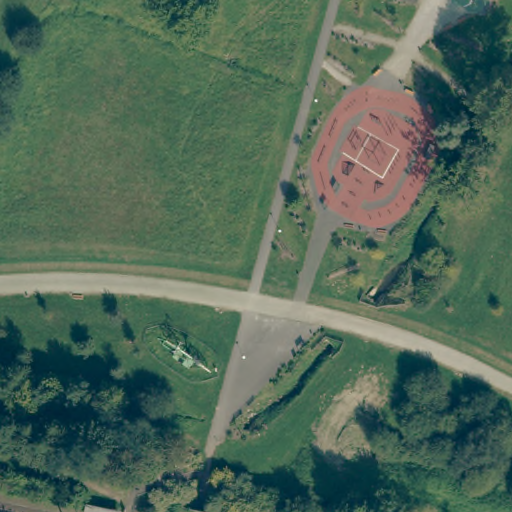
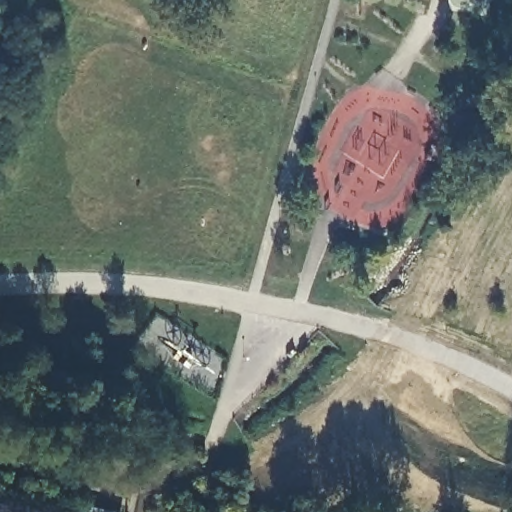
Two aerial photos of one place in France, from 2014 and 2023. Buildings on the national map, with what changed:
[]

